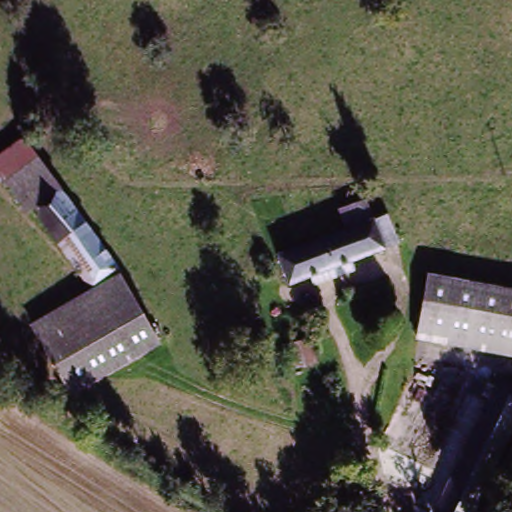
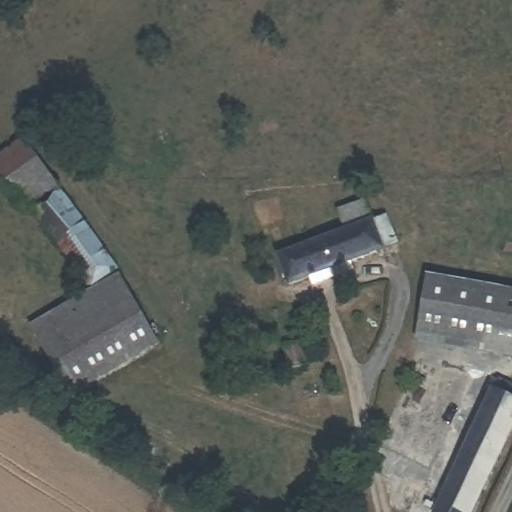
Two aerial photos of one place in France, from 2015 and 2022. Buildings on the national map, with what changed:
unchanged [(25,329),(88,294),(35,216),(27,222),(0,187),(0,153),(23,135),(120,272),(157,349),(70,399),(25,329)]
unchanged [(368,227),(381,221),(392,249),(379,254),(289,290),(278,263),(368,227)]
unchanged [(430,276),(512,291),(512,354),(420,338),(422,325),(430,276)]
unchanged [(490,400),(495,388),(512,396),(512,430),(475,509),(474,512),(439,512),(460,464),(490,400)]

